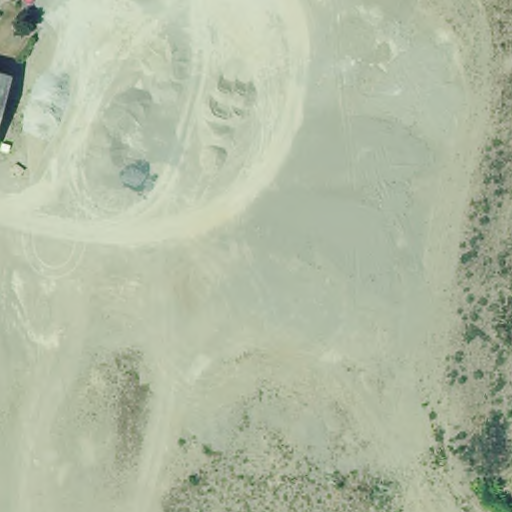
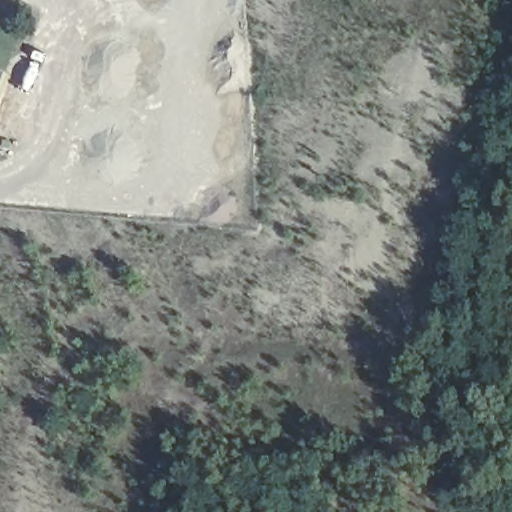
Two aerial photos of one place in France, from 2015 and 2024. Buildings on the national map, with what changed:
unchanged [(0,92),(0,79),(3,81),(0,92)]

